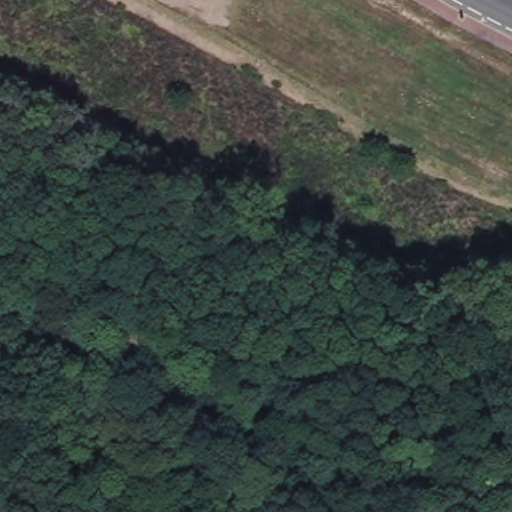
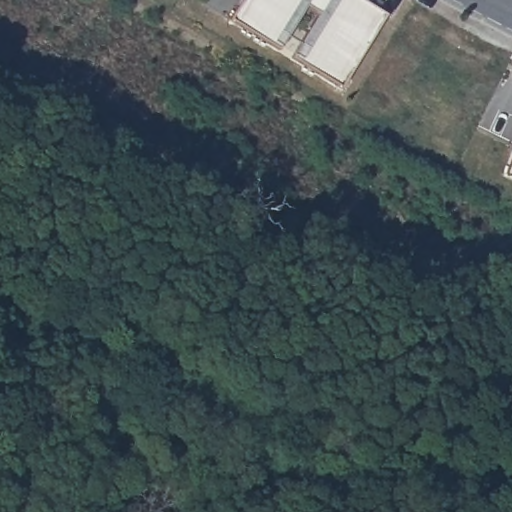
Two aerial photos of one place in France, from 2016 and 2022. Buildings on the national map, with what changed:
new [(362,0),(388,16),(343,90),(292,60),(319,15),(308,8),(280,52),(230,21),(243,0),(362,0)]
new [(512,164),(512,177),(508,176),(512,164)]

